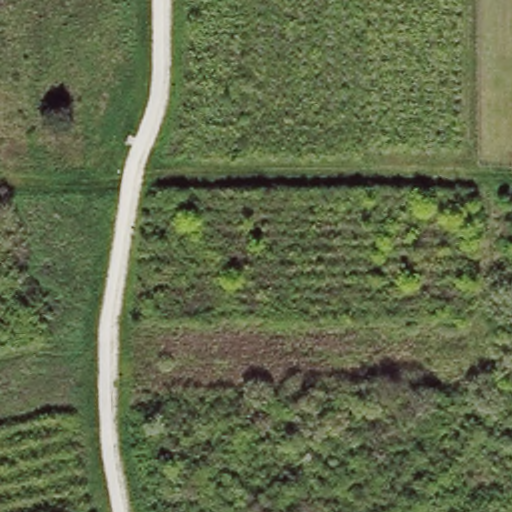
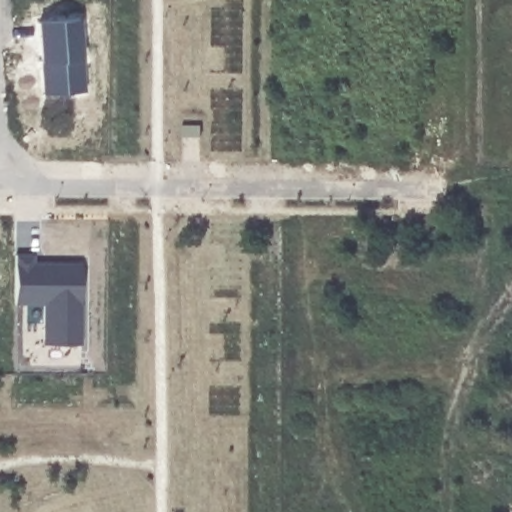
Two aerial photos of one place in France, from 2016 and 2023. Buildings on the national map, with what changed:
new [(78,20),(83,93),(43,95),(38,23),(78,20)]
new [(182,124),(202,125),(201,136),(182,136),(182,124)]
new [(32,256),(32,263),(44,263),(80,264),(80,345),(48,345),(47,343),(42,344),(42,305),(13,305),(15,256),(32,256)]

